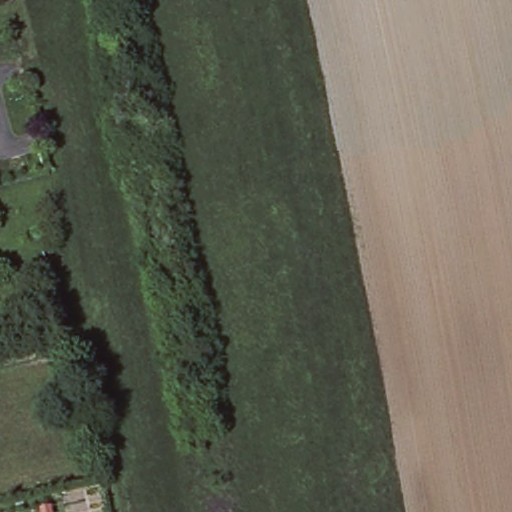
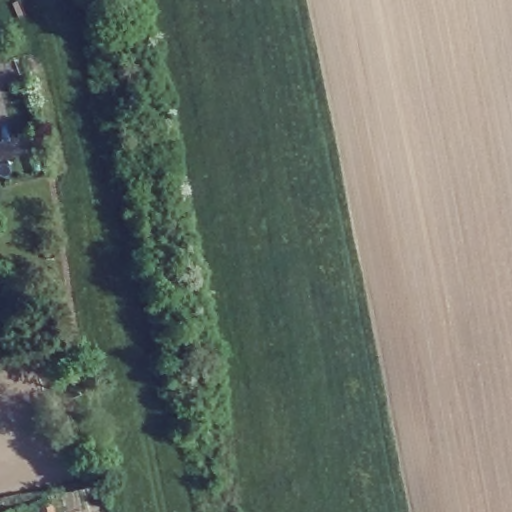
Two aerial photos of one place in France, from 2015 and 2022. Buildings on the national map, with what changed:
[]

